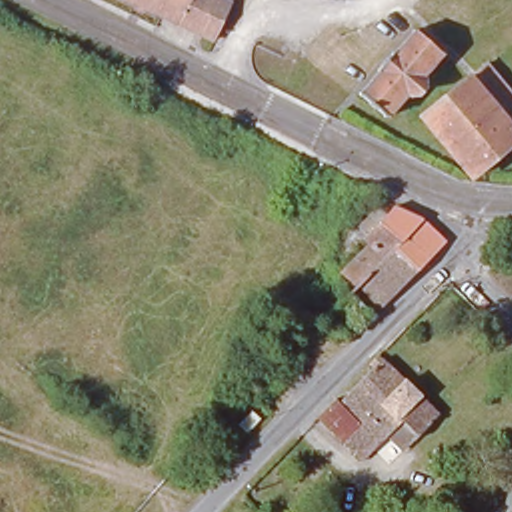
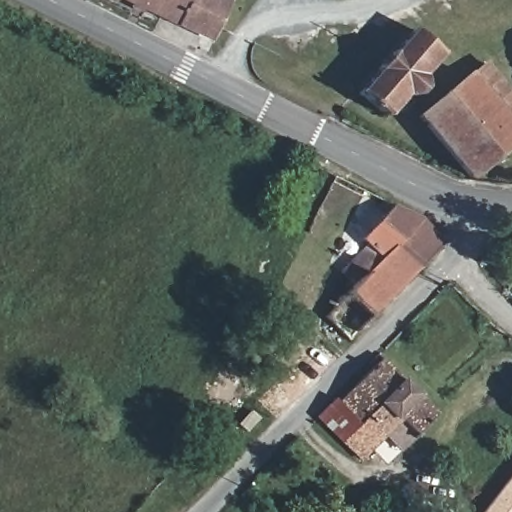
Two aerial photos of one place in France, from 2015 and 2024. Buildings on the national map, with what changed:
unchanged [(175,25),(154,14),(129,0),(215,0),(218,2),(228,7),(227,10),(225,13),(216,30),(209,43),(175,25)]
unchanged [(439,57),(388,119),(361,95),(414,31),(439,57)]
unchanged [(512,145),(476,175),(426,114),(473,76),(512,119),(512,145)]
unchanged [(370,317),(347,297),(355,288),(338,275),(394,207),(423,221),(442,243),(370,317)]
unchanged [(333,398),(340,403),(371,371),(366,365),(372,358),(377,364),(436,419),(416,440),(395,418),(377,435),(355,457),(315,418),(333,398)]
unchanged [(233,449),(239,456),(226,470),(219,463),(233,449)]
new [(512,512),(486,512),(512,478),(512,512)]

